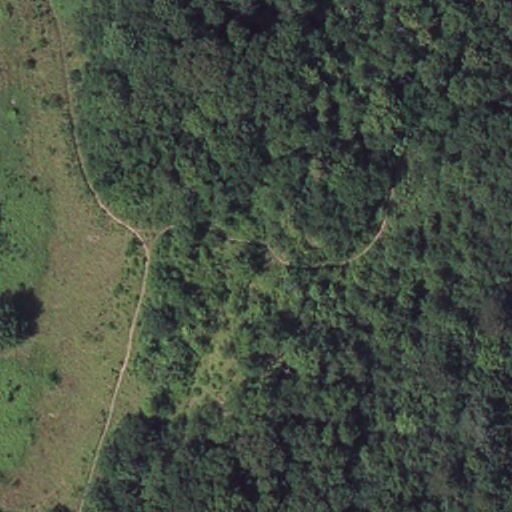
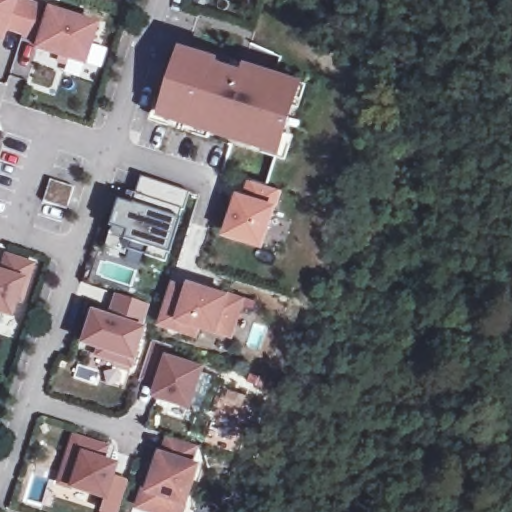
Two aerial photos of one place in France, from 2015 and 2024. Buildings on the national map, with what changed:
new [(85,64),(38,48),(40,41),(24,36),(23,35),(23,32),(6,27),(2,40),(0,39),(0,0),(18,0),(34,5),(97,25),(85,64)]
new [(173,80),(176,81),(187,49),(220,60),(220,61),(255,72),(256,68),(299,81),(287,116),(291,117),(280,150),(163,112),(173,80)]
new [(123,206),(121,206),(125,194),(131,196),(135,185),(143,187),(148,170),(197,185),(191,204),(190,203),(173,255),(153,249),(155,241),(137,235),(132,249),(112,242),(116,229),(123,206)]
new [(57,173),(80,180),(74,202),(50,195),(57,173)]
new [(242,196),(249,198),(255,181),(282,190),(265,245),(230,234),(242,196)]
new [(7,266),(12,250),(40,258),(28,295),(23,293),(18,309),(0,303),(0,264),(2,265),(7,266)]
new [(173,283),(192,290),(195,285),(245,301),(233,335),(201,325),(198,335),(160,323),(169,297),(173,283)]
new [(85,344),(95,313),(111,318),(118,295),(150,305),(141,328),(145,329),(133,367),(115,361),(98,356),(101,349),(85,344)]
new [(155,340),(173,346),(170,356),(205,367),(193,406),(157,395),(160,385),(142,380),(155,340)]
new [(158,470),(163,453),(166,454),(171,436),(199,445),(193,462),(200,465),(189,501),(186,500),(182,512),(159,512),(141,506),(147,487),(153,469),(158,470)]
new [(76,438),(108,448),(104,461),(117,465),(113,478),(130,484),(121,512),(104,512),(102,511),(106,498),(74,488),(61,484),(65,473),(76,438)]

